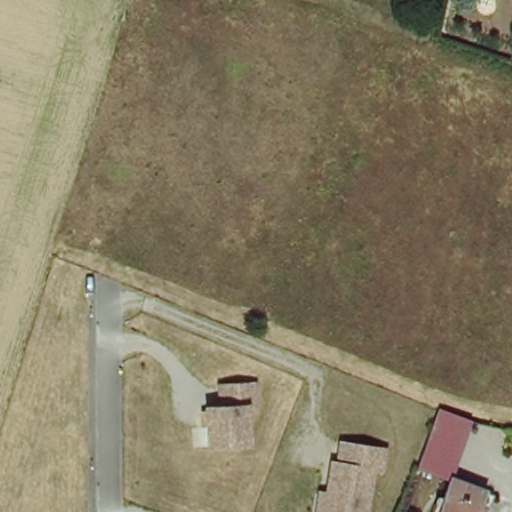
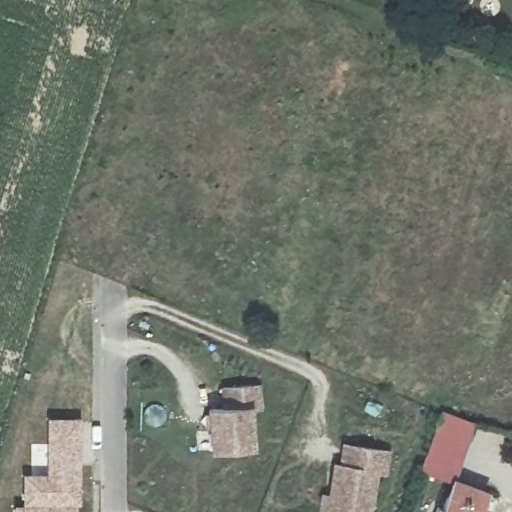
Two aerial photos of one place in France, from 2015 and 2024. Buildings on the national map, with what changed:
unchanged [(226,409),(225,389),(261,387),(262,409),(253,409),(254,448),(214,451),(211,411),(226,409)]
unchanged [(467,444),(453,481),(421,468),(442,414),(475,424),(467,444)]
new [(21,473),(45,472),(46,417),(81,418),(80,504),(21,503),(21,473)]
unchanged [(320,495),(327,496),(333,461),(339,462),(341,445),(385,452),(381,474),(372,473),(366,512),(317,512),(320,495)]
unchanged [(490,496),(484,512),(440,512),(453,481),(490,496)]
new [(13,503),(21,503),(80,504),(79,512),(13,512),(13,503)]

